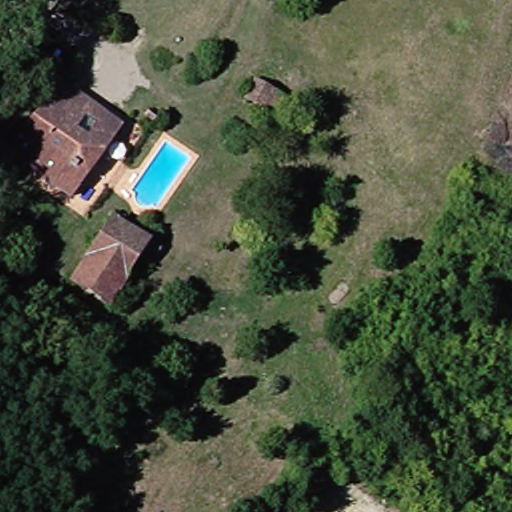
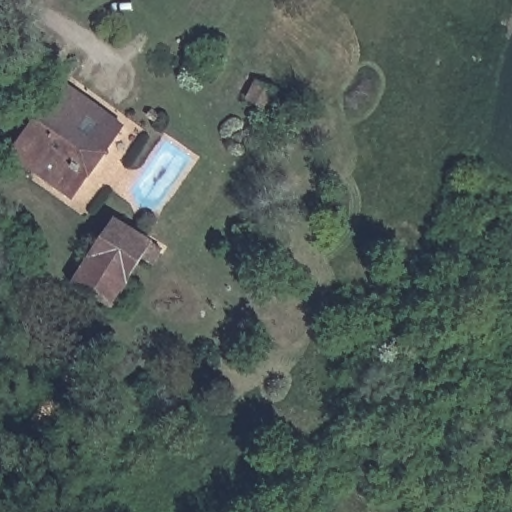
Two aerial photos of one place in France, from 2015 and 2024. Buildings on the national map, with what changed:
unchanged [(280,106),(250,90),(261,72),(288,87),(280,106)]
unchanged [(72,200),(11,157),(56,82),(119,122),(72,200)]
unchanged [(144,264),(130,255),(97,305),(61,280),(102,210),(156,247),(144,264)]

